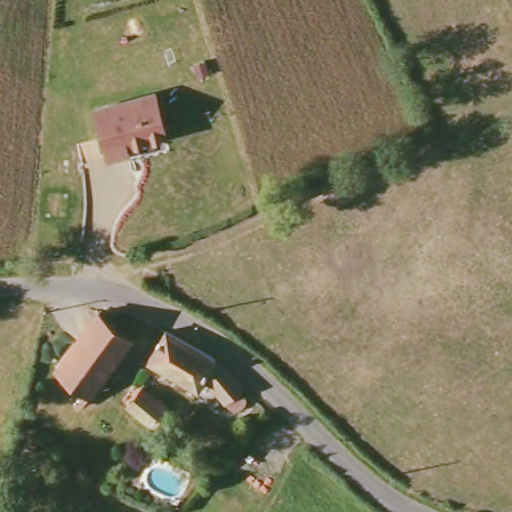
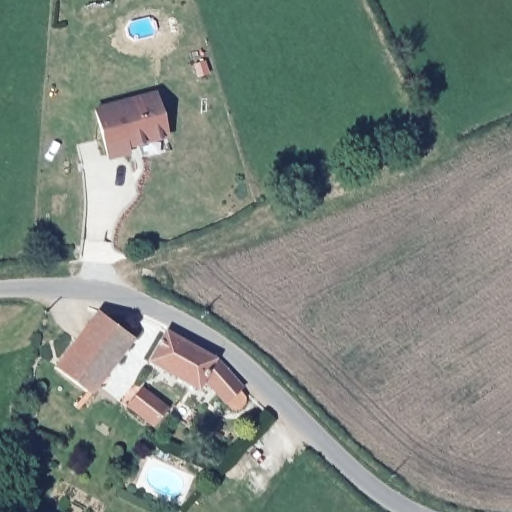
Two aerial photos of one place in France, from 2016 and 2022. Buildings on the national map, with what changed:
unchanged [(160,95),(170,139),(127,149),(128,155),(111,159),(100,109),(160,95)]
unchanged [(95,312),(135,342),(90,401),(52,370),(95,312)]
unchanged [(212,392),(205,400),(151,366),(172,335),(225,367),(252,393),(243,401),(245,410),(240,413),(224,401),(212,392)]
unchanged [(161,430),(153,425),(135,412),(148,393),(176,411),(170,419),(161,430)]

